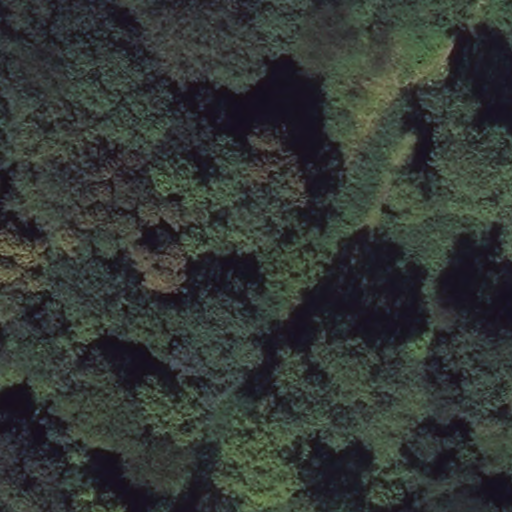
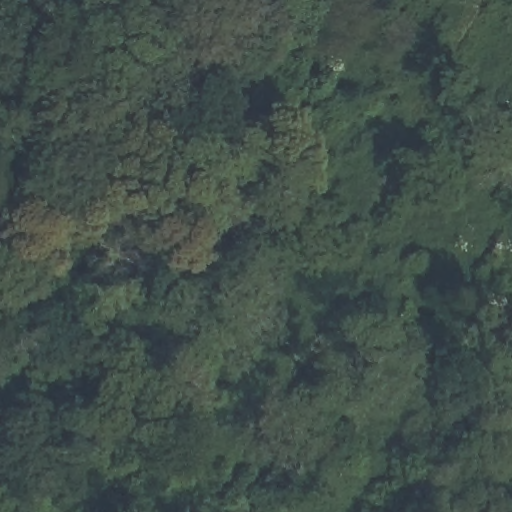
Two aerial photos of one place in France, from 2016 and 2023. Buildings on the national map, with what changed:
unchanged [(512,278),(512,280),(511,280),(512,278)]
unchanged [(496,290),(509,296),(502,310),(490,304),(496,290)]

